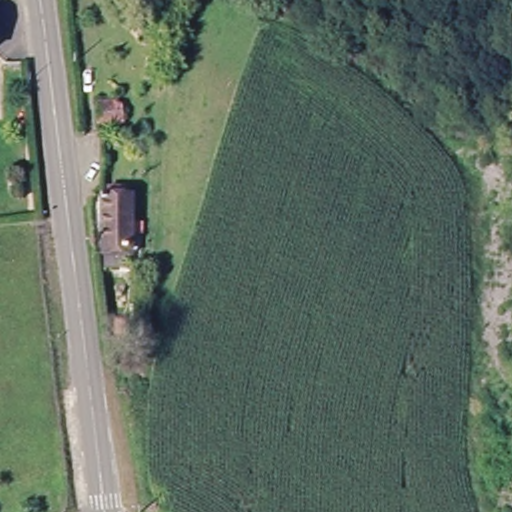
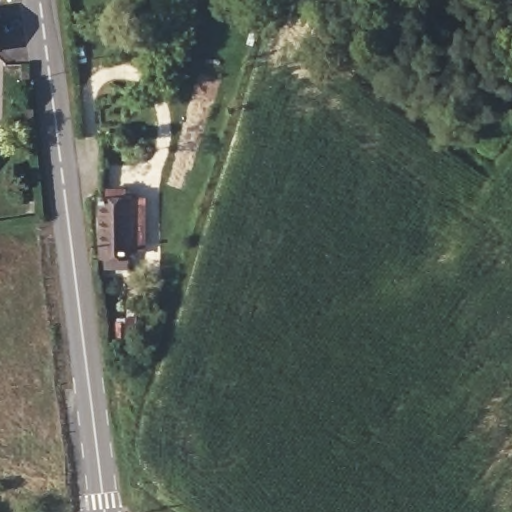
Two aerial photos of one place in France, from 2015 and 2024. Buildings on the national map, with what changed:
unchanged [(131,255),(103,255),(101,196),(130,195),(131,255)]

